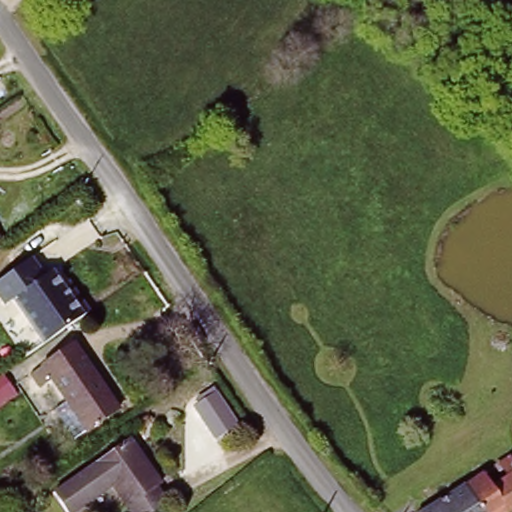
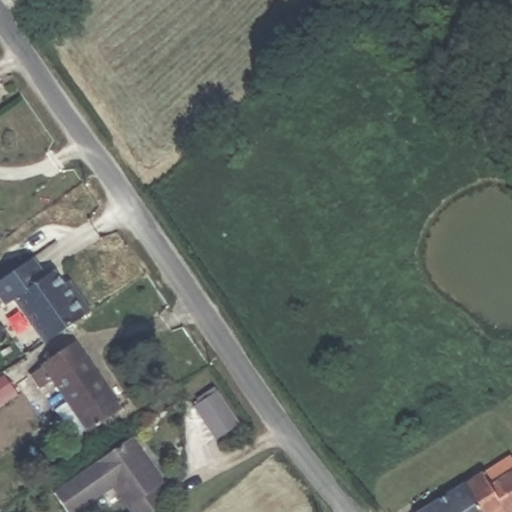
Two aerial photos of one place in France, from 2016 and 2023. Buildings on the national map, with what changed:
unchanged [(3,238),(0,241),(0,234),(3,238)]
unchanged [(44,275),(51,269),(62,283),(68,278),(90,308),(83,313),(45,340),(13,298),(5,304),(0,296),(0,280),(31,257),(44,275)]
unchanged [(120,411),(77,440),(58,416),(70,404),(55,386),(44,394),(32,379),(75,348),(120,411)]
unchanged [(149,512),(129,512),(110,483),(97,463),(130,437),(166,496),(149,512)]
unchanged [(512,509),(508,512),(422,512),(482,470),(512,451),(512,509)]
unchanged [(70,512),(67,512),(54,491),(97,463),(110,483),(70,512)]

